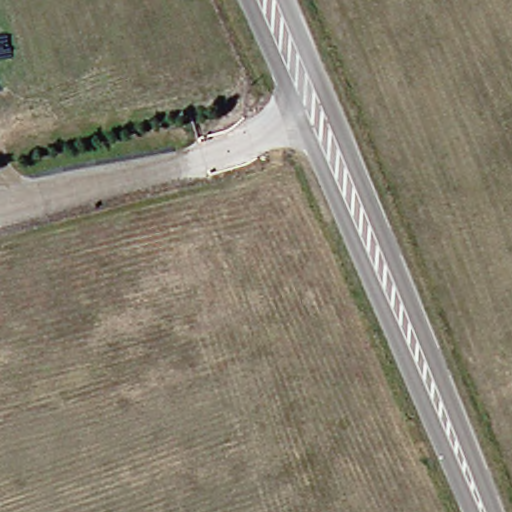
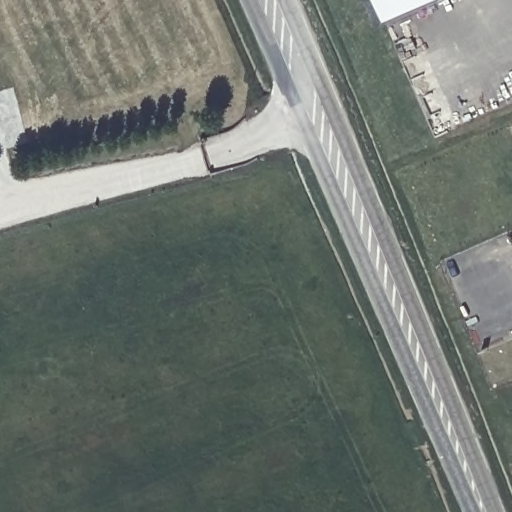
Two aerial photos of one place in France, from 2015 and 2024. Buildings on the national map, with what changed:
new [(386,26),(374,0),(443,0),(386,26)]

